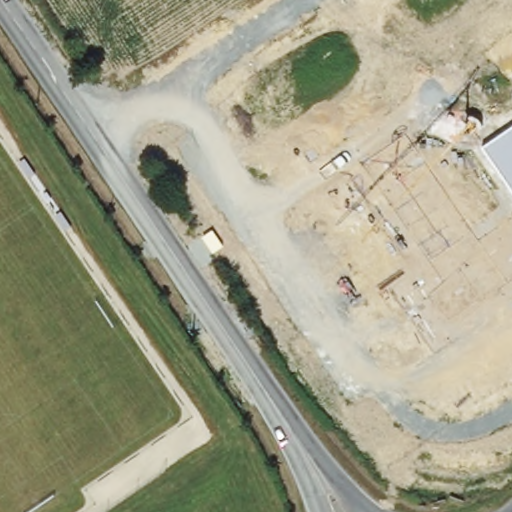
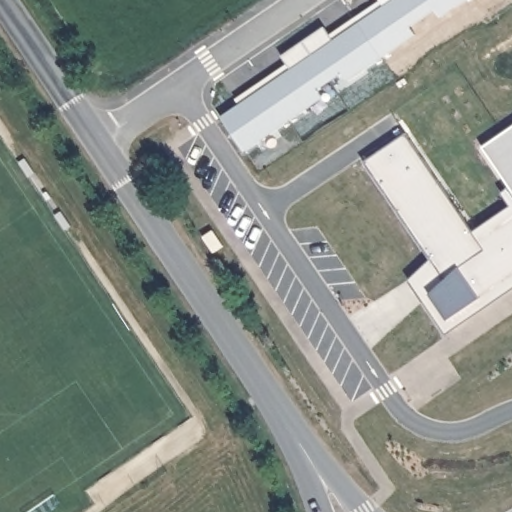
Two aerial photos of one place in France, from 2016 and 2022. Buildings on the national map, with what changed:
new [(321,28),(327,37),(352,19),(367,40),(379,59),(346,82),(340,74),(315,91),(321,99),(242,153),(222,124),(219,119),(237,107),(233,101),(285,66),(279,58),(321,28)]
unchanged [(512,128),(512,191),(483,148),(512,128)]
new [(408,280),(430,259),(364,162),(405,133),(472,232),(509,206),(501,193),(509,187),(512,191),(512,289),(445,334),(408,280)]

